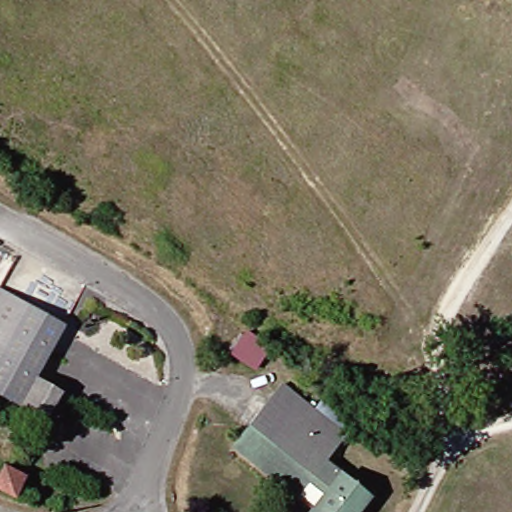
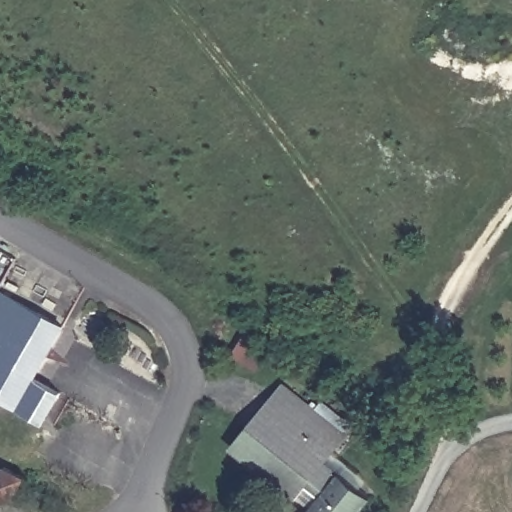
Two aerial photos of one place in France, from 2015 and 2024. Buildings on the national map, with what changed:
unchanged [(31,384),(59,402),(42,427),(0,402),(0,298),(63,333),(31,384)]
unchanged [(248,328),(274,347),(259,370),(231,353),(248,328)]
unchanged [(355,512),(302,512),(291,501),(227,448),(280,388),(341,440),(322,463),(335,475),(364,500),(355,512)]
unchanged [(0,478),(4,469),(23,476),(14,498),(0,494),(0,478)]

